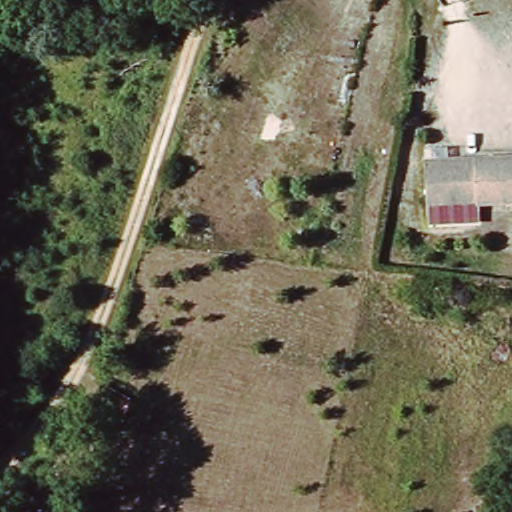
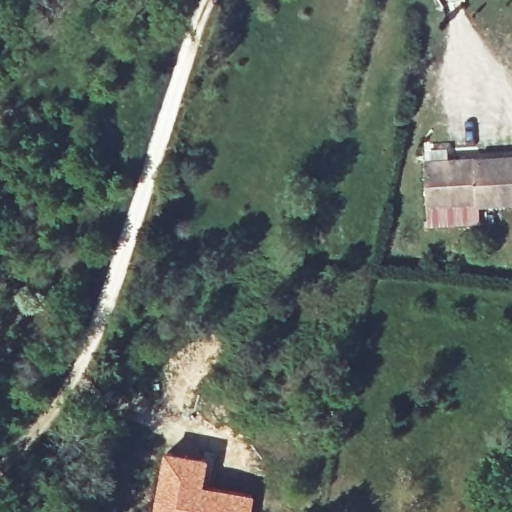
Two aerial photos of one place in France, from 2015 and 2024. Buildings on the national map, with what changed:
unchanged [(486,211),(434,212),(431,151),(437,151),(437,139),(453,138),(455,150),(512,148),(512,193),(484,194),(486,211)]
new [(209,458),(203,485),(255,495),(251,512),(152,512),(163,450),(209,458)]

